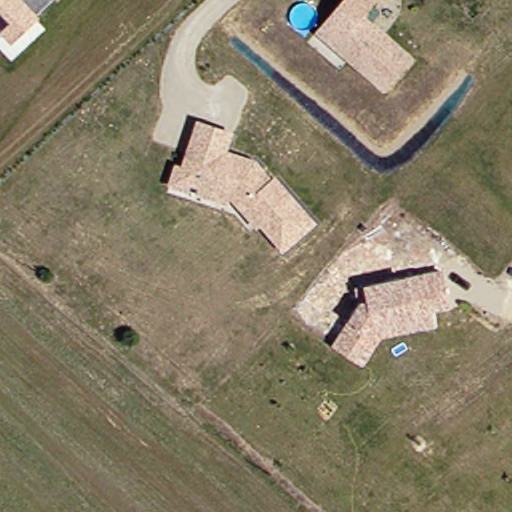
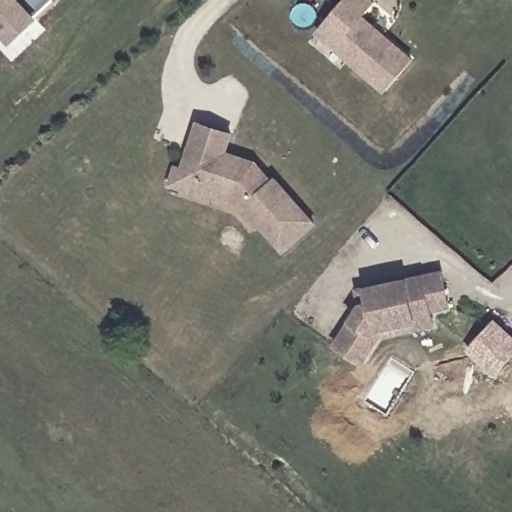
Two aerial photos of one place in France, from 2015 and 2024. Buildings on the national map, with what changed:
unchanged [(0,24),(0,0),(51,0),(13,36),(0,24)]
unchanged [(409,59),(383,89),(322,36),(314,30),(328,13),(340,0),(371,0),(372,1),(359,15),(409,59)]
unchanged [(226,192),(218,201),(163,183),(168,165),(180,169),(195,123),(228,134),(222,153),(252,162),(270,182),(272,179),(311,223),(282,249),(258,222),(255,225),(244,213),(226,192)]
unchanged [(379,334),(361,360),(354,356),(334,342),(360,302),(357,286),(442,270),(448,304),(430,308),(433,323),(379,334)]
new [(512,337),(512,350),(496,365),(491,371),(466,346),(471,341),(493,319),(512,337)]

